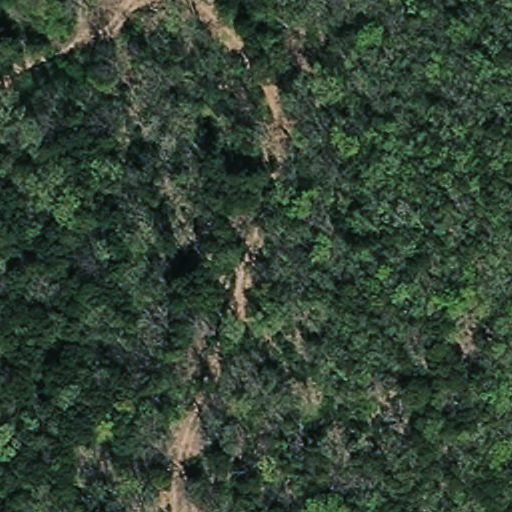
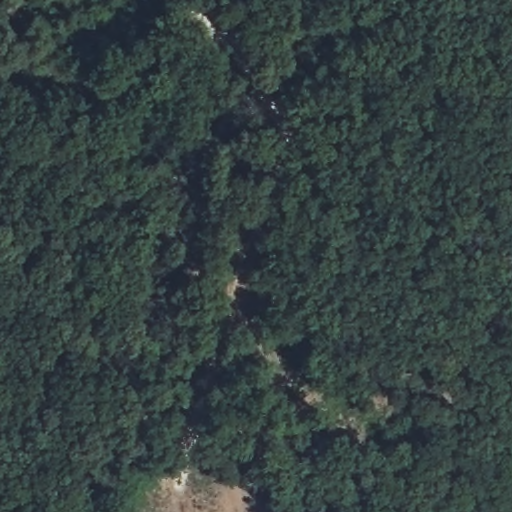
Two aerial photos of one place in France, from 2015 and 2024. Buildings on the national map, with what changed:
[]

